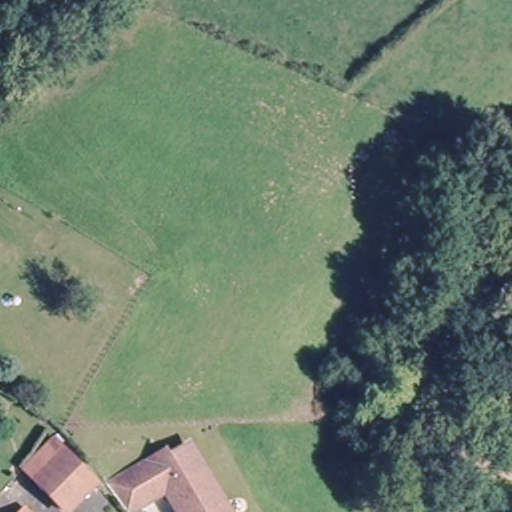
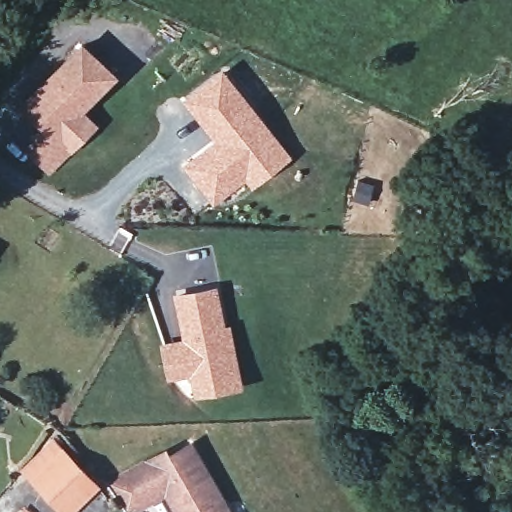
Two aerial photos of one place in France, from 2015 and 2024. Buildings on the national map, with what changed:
new [(81,39),(111,69),(56,128),(24,98),(81,39)]
new [(291,155),(253,186),(247,179),(216,204),(184,164),(214,140),(183,98),(223,66),(291,155)]
new [(100,124),(51,173),(25,149),(50,123),(56,128),(79,104),(100,124)]
new [(218,285),(226,323),(232,322),(243,387),(196,396),(192,375),(167,380),(161,343),(182,339),(174,295),(218,285)]
unchanged [(31,478),(59,448),(86,474),(59,503),(31,478)]
unchanged [(161,455),(166,461),(191,450),(230,512),(175,512),(164,493),(132,512),(128,512),(110,486),(161,455)]
unchanged [(21,505),(27,512),(14,512),(21,505)]

